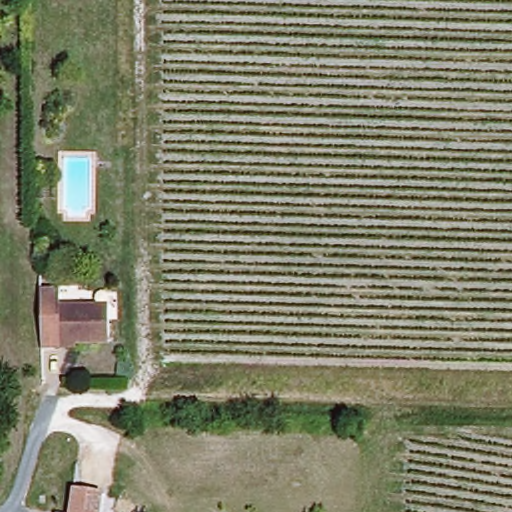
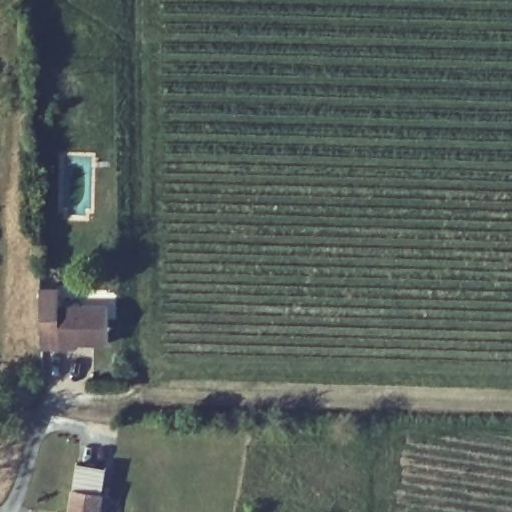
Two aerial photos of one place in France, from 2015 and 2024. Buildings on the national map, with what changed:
unchanged [(52,347),(52,341),(50,285),(71,285),(72,302),(121,301),(122,340),(88,341),(88,347),(52,347)]
unchanged [(98,490),(96,512),(71,512),(75,486),(98,490)]

